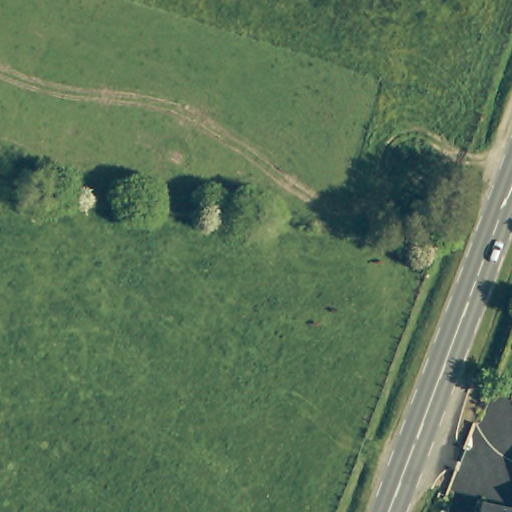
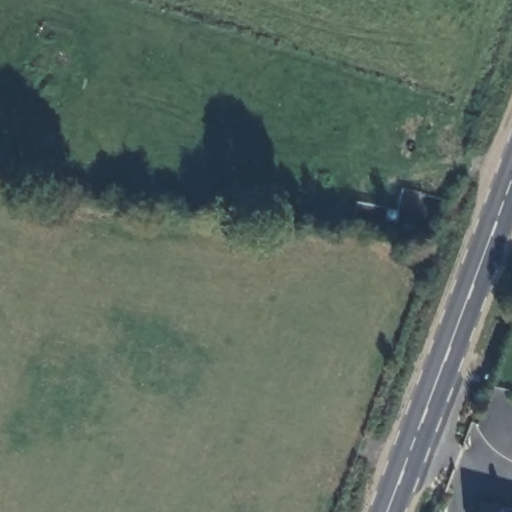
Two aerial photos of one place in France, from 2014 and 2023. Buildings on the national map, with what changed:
unchanged [(512,510),(512,512),(475,512),(478,502),(512,510)]

